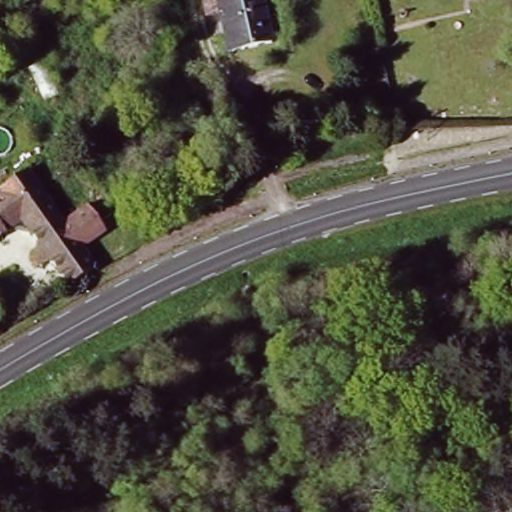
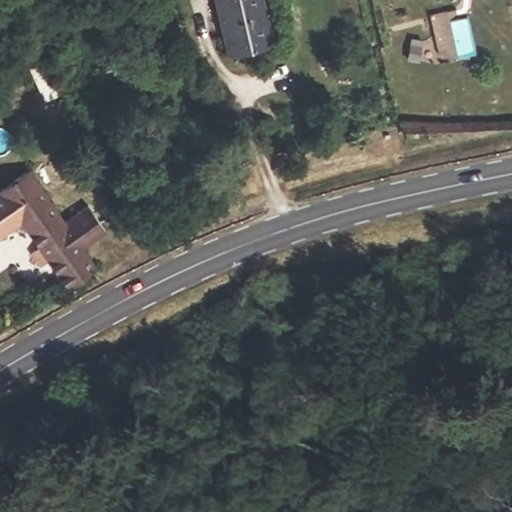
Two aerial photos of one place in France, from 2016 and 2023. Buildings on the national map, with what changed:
unchanged [(226,54),(213,0),(262,0),(273,43),(226,54)]
unchanged [(108,282),(67,304),(18,238),(0,251),(0,191),(29,171),(108,282)]

